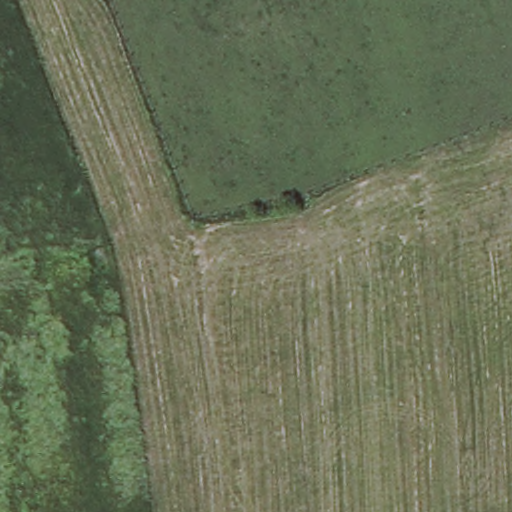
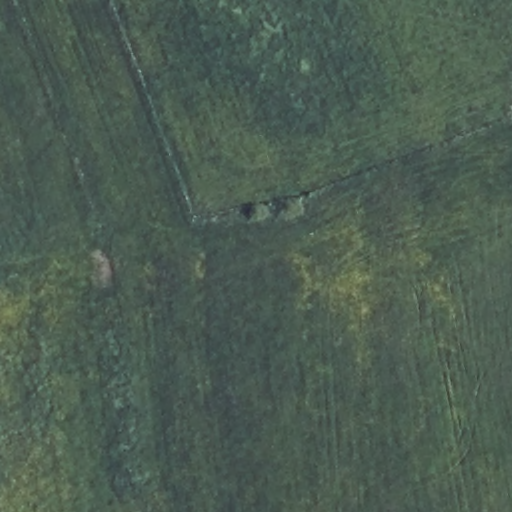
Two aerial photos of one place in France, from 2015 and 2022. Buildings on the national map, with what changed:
[]

